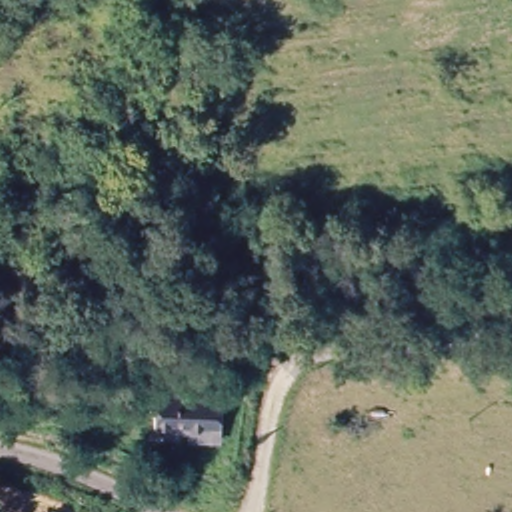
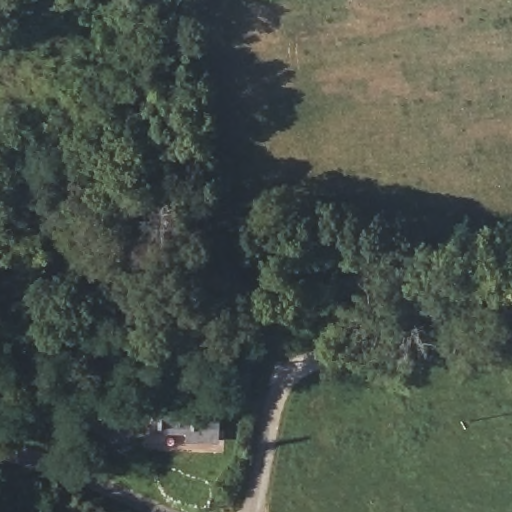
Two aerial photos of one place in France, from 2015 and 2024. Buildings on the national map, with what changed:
unchanged [(155,374),(190,376),(188,393),(215,394),(213,437),(178,434),(179,420),(151,418),(155,374)]

